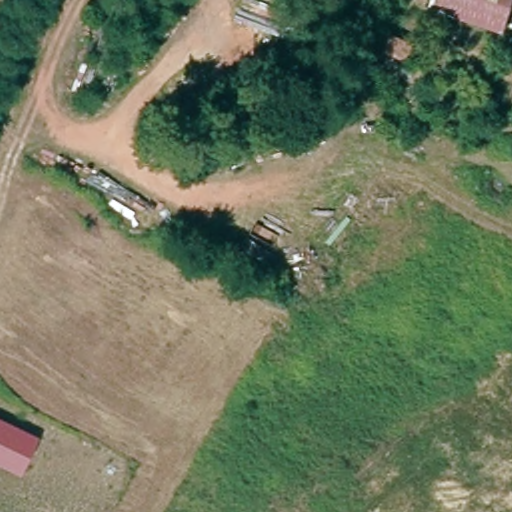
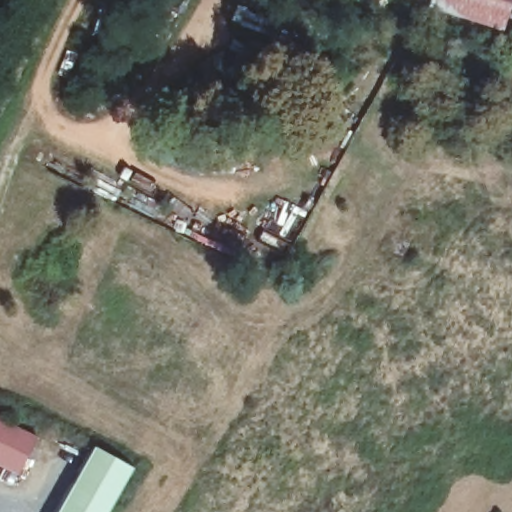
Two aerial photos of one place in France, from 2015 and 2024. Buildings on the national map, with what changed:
unchanged [(499,30),(426,5),(428,0),(495,0),(508,4),(499,30)]
unchanged [(18,469),(0,460),(0,415),(36,433),(18,469)]
new [(95,446),(135,468),(116,504),(111,512),(58,512),(95,446)]

